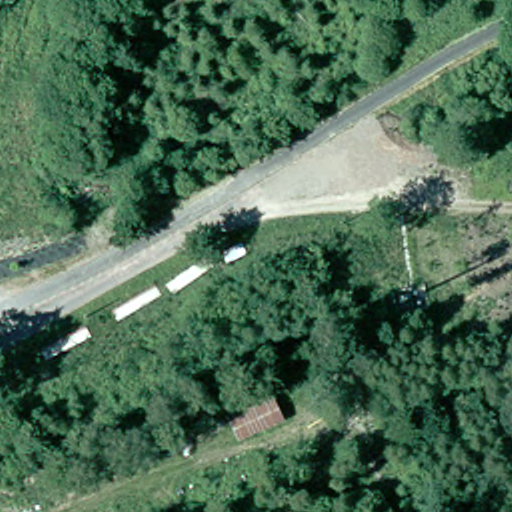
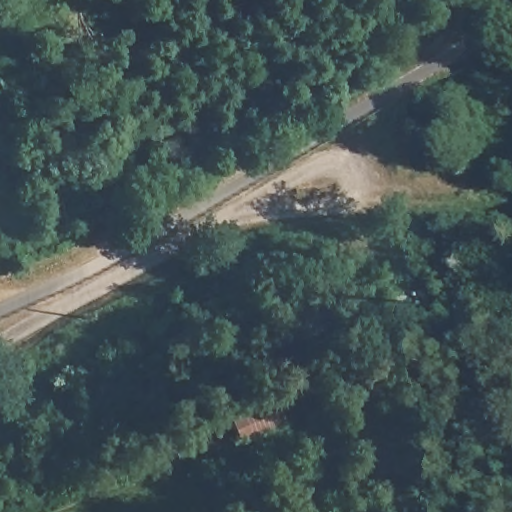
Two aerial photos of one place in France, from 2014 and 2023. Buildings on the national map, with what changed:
unchanged [(285,422),(238,444),(225,418),(272,397),(285,422)]

